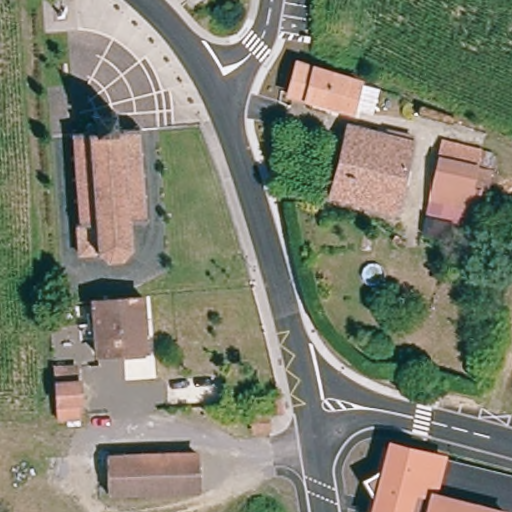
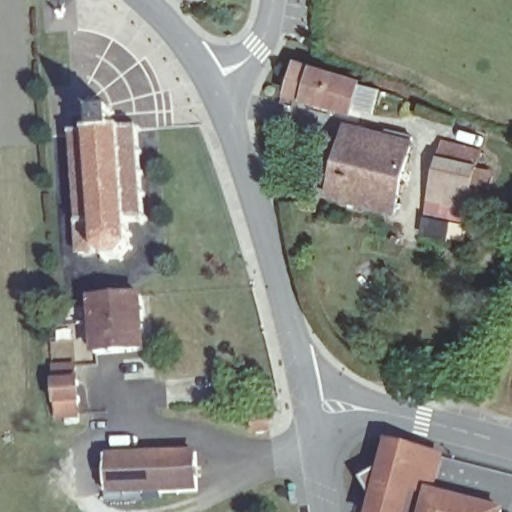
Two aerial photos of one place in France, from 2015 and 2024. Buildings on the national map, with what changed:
unchanged [(360,80),(354,109),(292,92),(298,63),(360,80)]
unchanged [(88,140),(90,116),(111,115),(112,134),(135,135),(141,226),(126,225),(128,250),(118,265),(108,266),(101,256),(80,256),(77,236),(81,236),(71,140),(88,140)]
unchanged [(385,140),(386,134),(411,140),(394,215),(331,201),(347,132),(385,140)]
unchanged [(443,149),(477,156),(468,217),(431,208),(443,149)]
unchanged [(141,351),(98,353),(94,297),(141,297),(141,351)]
unchanged [(71,371),(74,382),(77,382),(80,397),(76,397),(76,419),(57,419),(51,373),(71,371)]
unchanged [(273,419),(273,435),(256,435),(258,419),(273,419)]
unchanged [(402,505),(404,495),(381,490),(390,449),(424,457),(441,461),(432,498),(458,504),(458,503),(499,512),(409,512),(410,507),(402,505)]
unchanged [(202,460),(200,493),(111,491),(114,455),(202,460)]

